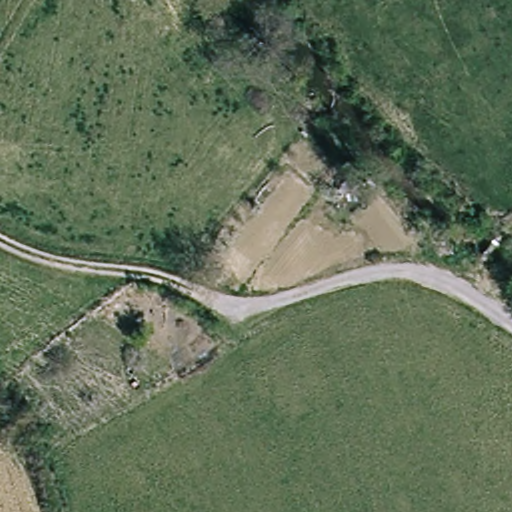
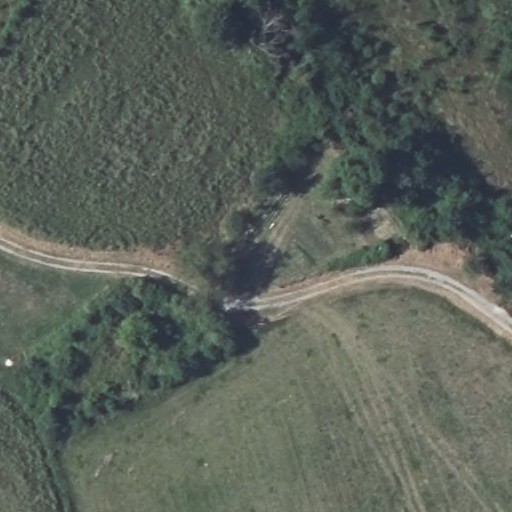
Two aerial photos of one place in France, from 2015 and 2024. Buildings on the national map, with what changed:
[]

